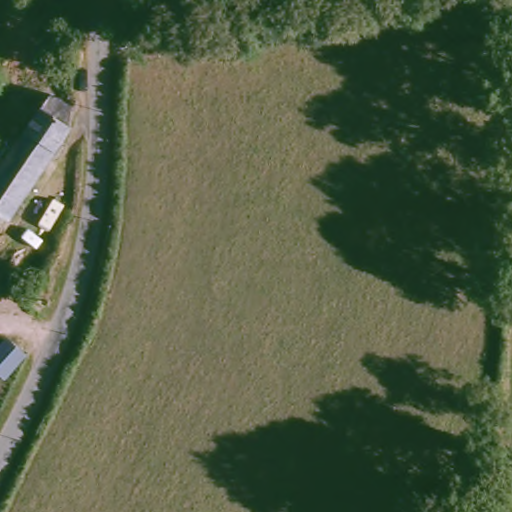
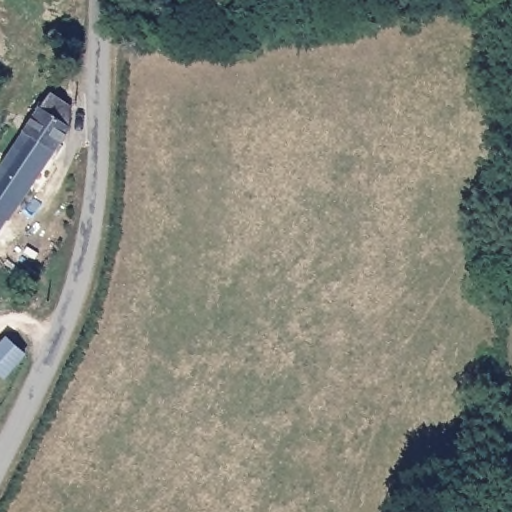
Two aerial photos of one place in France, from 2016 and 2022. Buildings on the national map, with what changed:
unchanged [(75,101),(67,117),(71,121),(0,225),(0,164),(52,86),(75,101)]
unchanged [(48,302),(38,316),(20,299),(30,288),(48,302)]
unchanged [(3,382),(0,380),(0,343),(2,341),(22,360),(3,382)]

